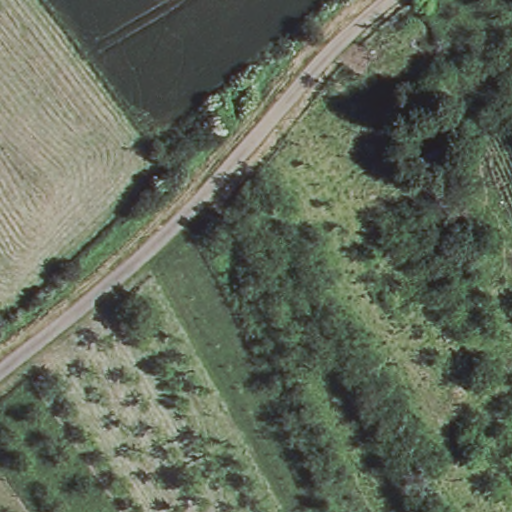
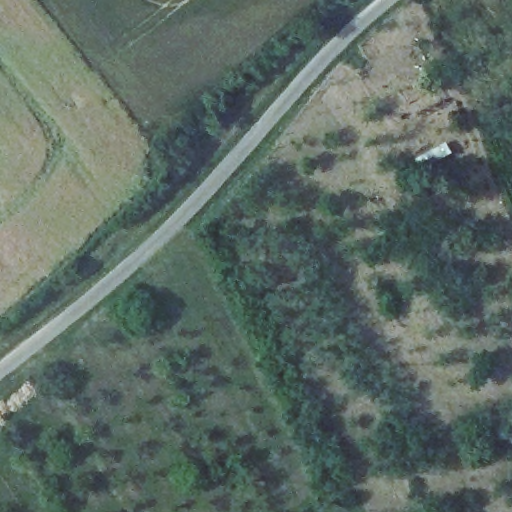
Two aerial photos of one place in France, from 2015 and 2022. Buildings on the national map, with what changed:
unchanged [(445,141),(454,155),(427,168),(422,153),(445,141)]

